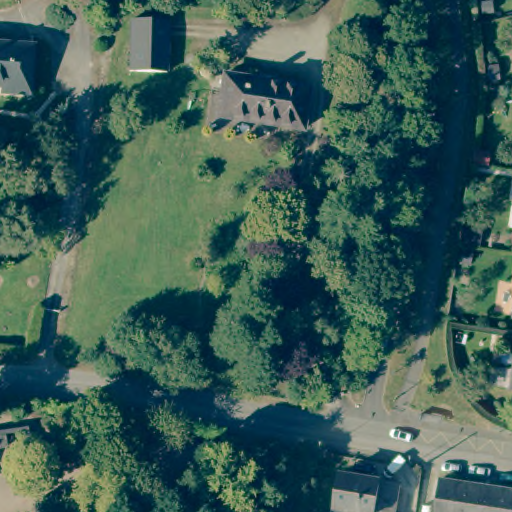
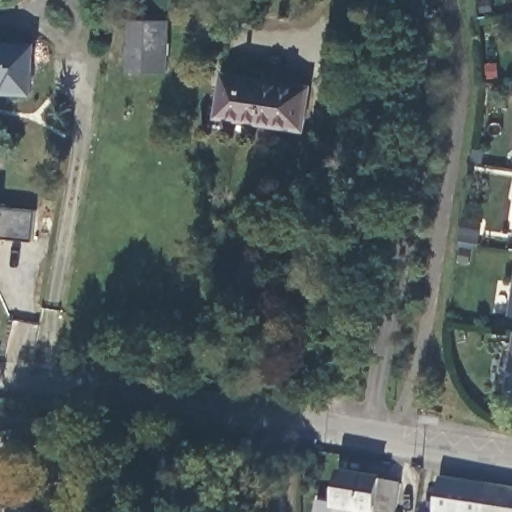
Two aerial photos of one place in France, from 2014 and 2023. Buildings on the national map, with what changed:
unchanged [(166,68),(131,67),(134,16),(169,17),(166,68)]
unchanged [(33,41),(30,89),(2,87),(2,82),(0,82),(0,39),(33,41)]
unchanged [(310,88),(305,126),(302,130),(219,117),(224,75),(310,88)]
unchanged [(394,201),(380,198),(383,182),(397,185),(394,201)]
new [(35,241),(0,238),(0,249),(0,208),(35,212),(35,241)]
unchanged [(468,228),(480,230),(478,243),(466,241),(468,228)]
unchanged [(474,260),(463,259),(465,246),(476,248),(474,260)]
unchanged [(512,378),(512,384),(511,384),(512,378)]
unchanged [(5,431),(9,448),(0,449),(0,432),(5,431)]
unchanged [(46,435),(50,437),(52,442),(52,446),(50,450),(45,453),(40,452),(36,449),(35,445),(35,440),(37,436),(41,434),(46,435)]
unchanged [(398,512),(337,512),(343,475),(401,485),(398,512)]
unchanged [(512,512),(437,512),(443,479),(512,490),(512,512)]

